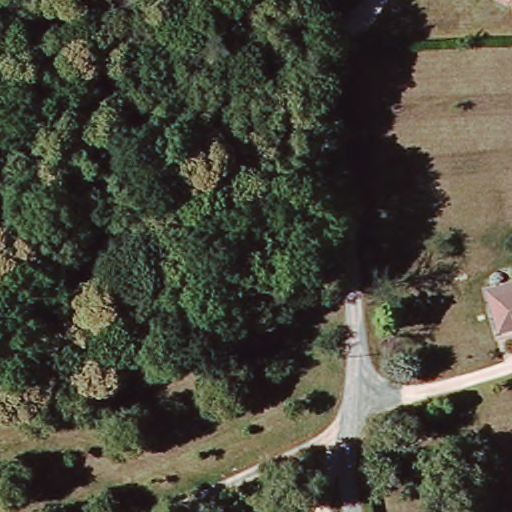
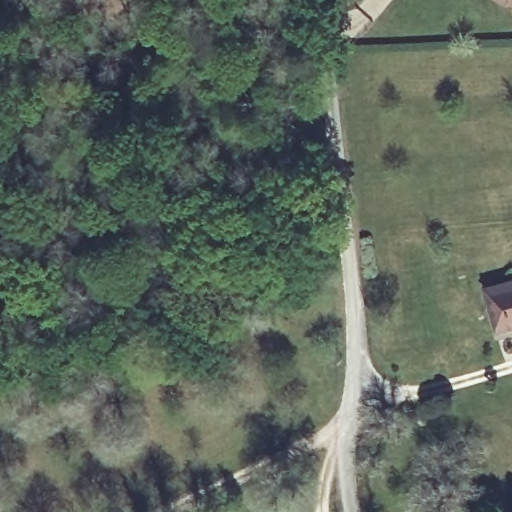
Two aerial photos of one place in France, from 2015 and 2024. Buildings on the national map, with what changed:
unchanged [(507,0),(512,0),(512,2),(507,0)]
unchanged [(487,290),(512,283),(512,328),(499,332),(487,290)]

